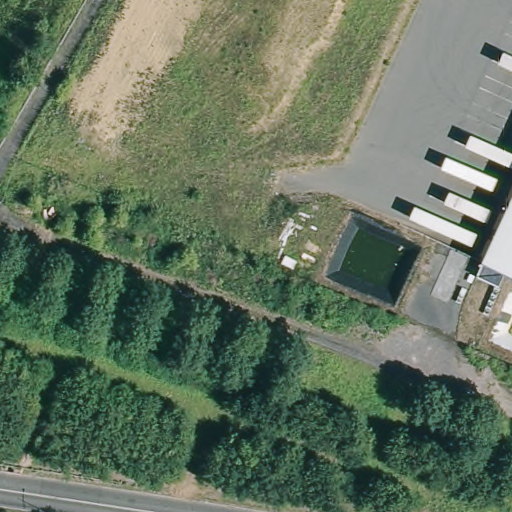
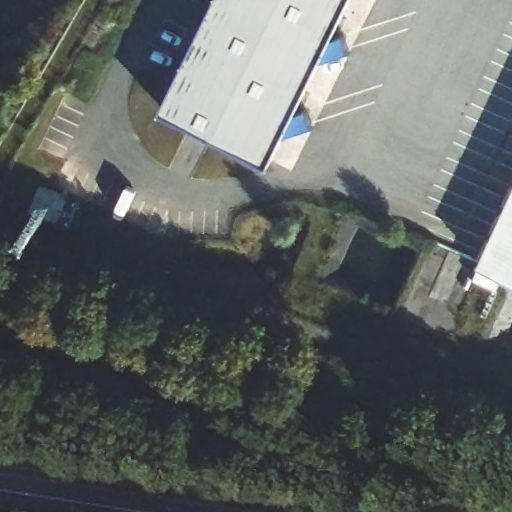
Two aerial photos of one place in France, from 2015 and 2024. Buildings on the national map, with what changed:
new [(350,0),(270,162),(162,108),(215,0),(350,0)]
unchanged [(512,193),(512,281),(479,265),(512,193)]

